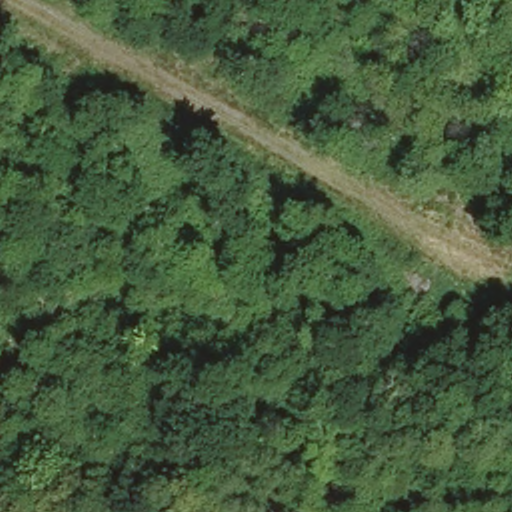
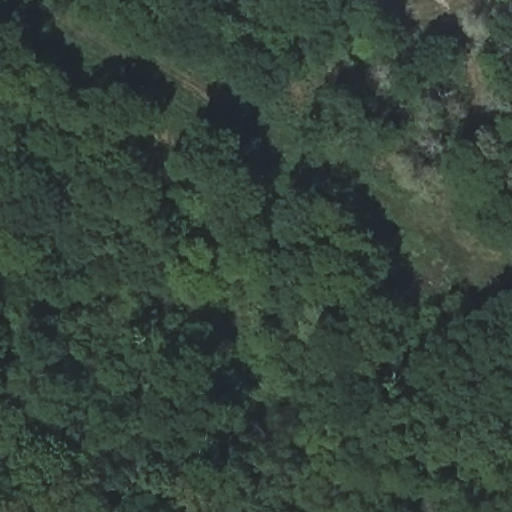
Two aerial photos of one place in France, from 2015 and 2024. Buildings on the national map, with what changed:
[]

